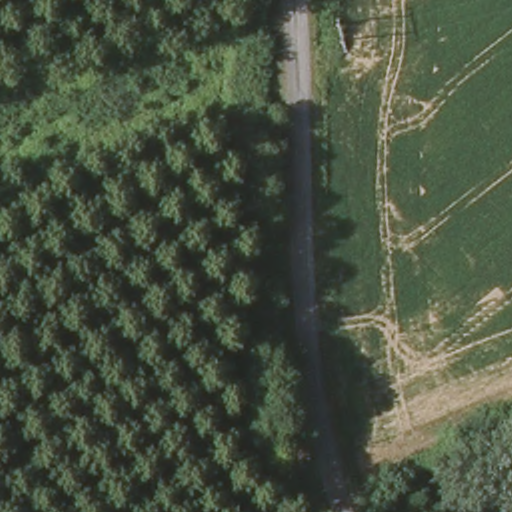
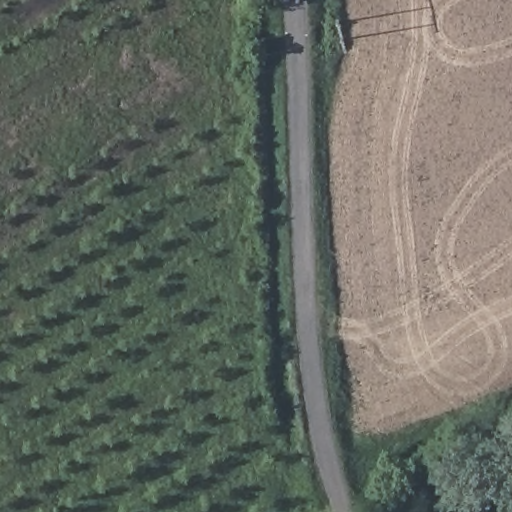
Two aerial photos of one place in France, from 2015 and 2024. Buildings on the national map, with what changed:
[]

